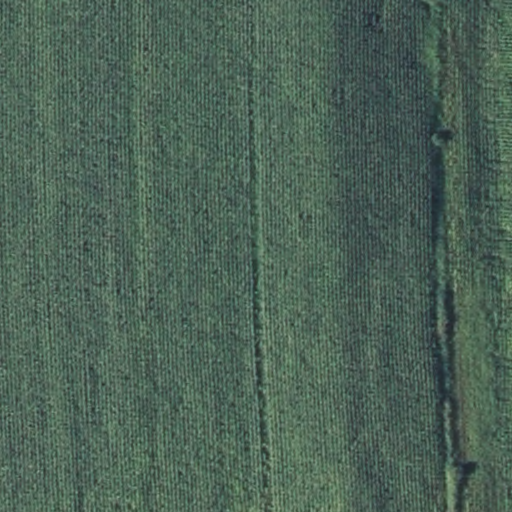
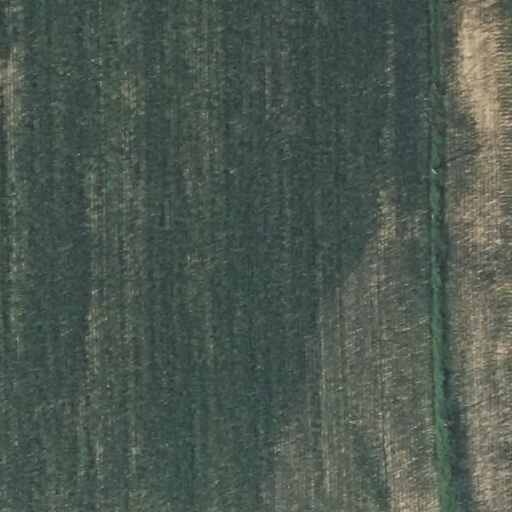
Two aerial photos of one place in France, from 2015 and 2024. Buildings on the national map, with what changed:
[]

